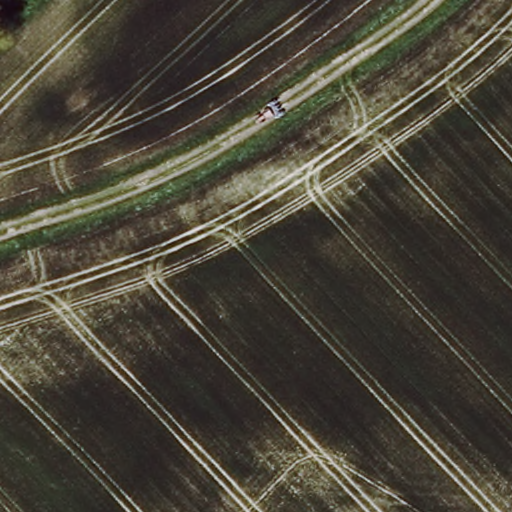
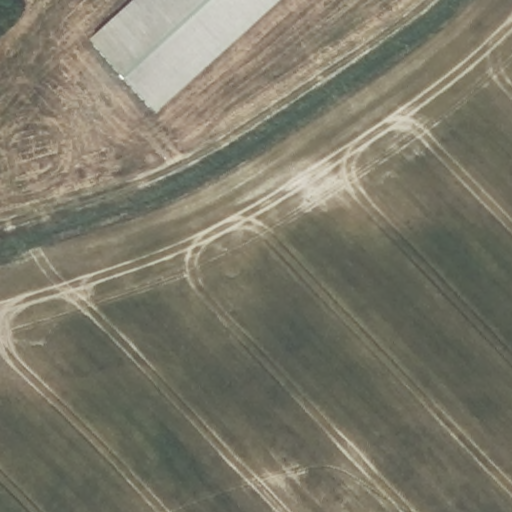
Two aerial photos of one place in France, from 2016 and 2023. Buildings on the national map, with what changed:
new [(157,113),(89,37),(130,0),(281,0),(157,113)]

